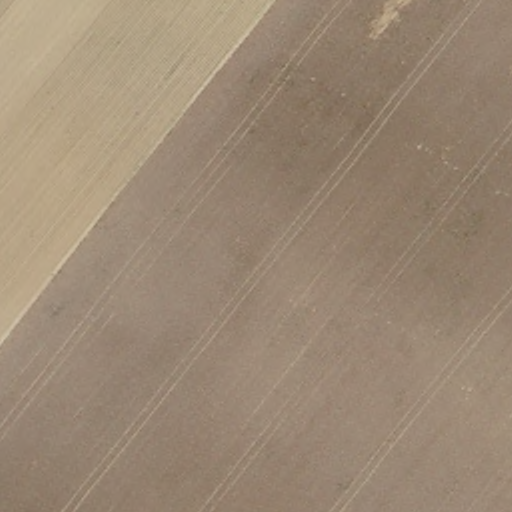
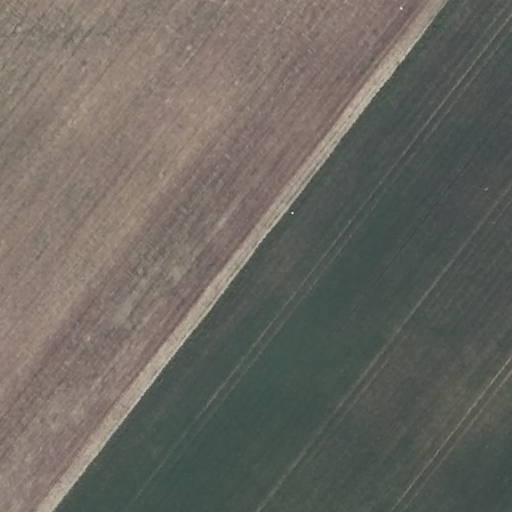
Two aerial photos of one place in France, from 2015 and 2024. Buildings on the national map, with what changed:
[]

